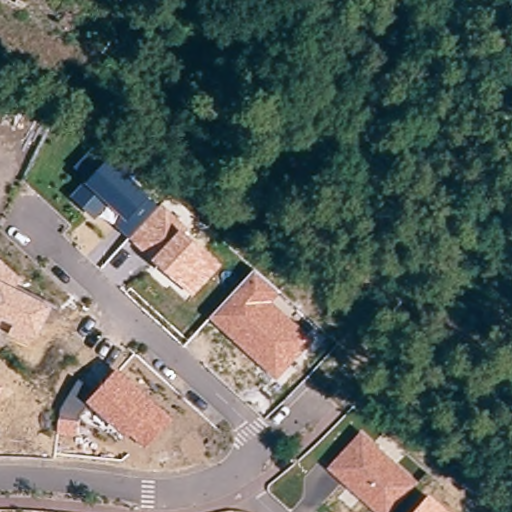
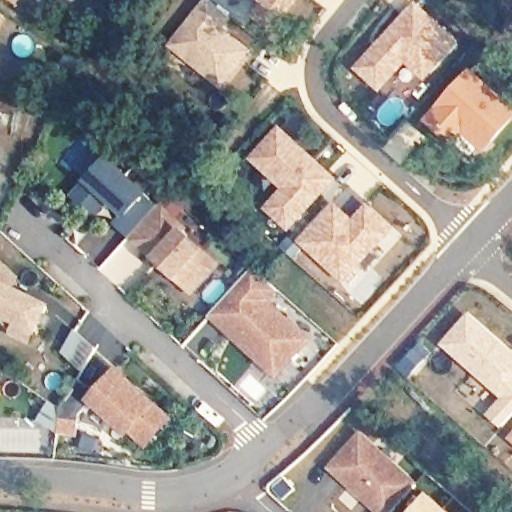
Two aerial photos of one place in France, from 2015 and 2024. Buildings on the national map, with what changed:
new [(13,0),(25,0),(22,5),(13,0)]
new [(234,20),(227,28),(255,50),(222,88),(168,45),(206,0),(234,20)]
new [(265,0),(298,0),(285,16),(265,0)]
new [(464,41),(427,81),(407,65),(381,93),(353,69),(418,2),(464,41)]
new [(0,27),(0,15),(6,18),(0,27)]
new [(512,104),(512,124),(487,153),(465,135),(452,147),(423,121),(472,68),(512,104)]
new [(340,179),(290,231),(263,208),(283,187),(251,159),(282,124),(340,179)]
unchanged [(152,194),(150,198),(159,206),(162,203),(188,227),(185,231),(222,263),(192,295),(114,223),(100,214),(96,218),(70,195),(86,178),(74,166),(92,146),(152,194)]
new [(355,218),(370,203),(396,228),(346,283),(300,241),(336,202),(355,218)]
unchanged [(18,284),(55,302),(37,336),(35,335),(31,344),(7,334),(13,325),(1,319),(0,321),(0,258),(22,276),(18,284)]
unchanged [(281,292),(272,302),(313,341),(277,378),(208,318),(255,269),(281,292)]
new [(512,350),(512,418),(502,428),(487,417),(505,398),(441,345),(470,314),(512,350)]
unchanged [(172,418),(145,447),(131,434),(127,438),(89,403),(79,416),(77,434),(57,434),(60,408),(80,379),(98,391),(119,367),(172,418)]
unchanged [(0,392),(0,382),(4,384),(0,392)]
unchanged [(418,482),(392,512),(375,512),(326,467),(362,429),(418,482)]
new [(509,438),(512,435),(512,441),(509,438)]
unchanged [(452,512),(411,512),(430,492),(452,512)]

